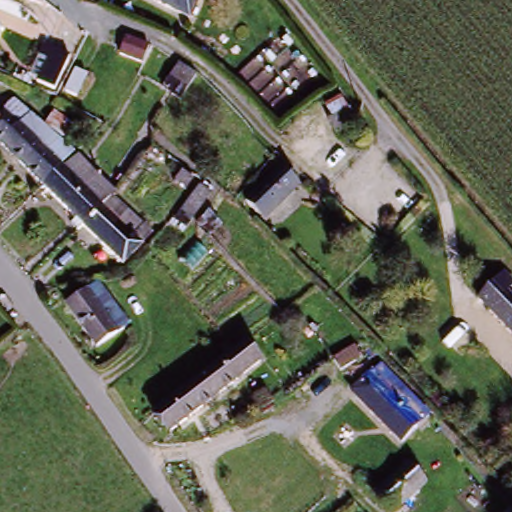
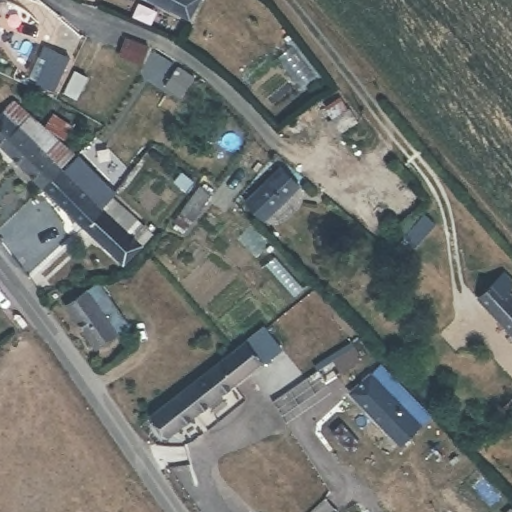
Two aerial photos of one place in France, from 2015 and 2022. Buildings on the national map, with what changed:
unchanged [(156,0),(199,0),(190,18),(156,0)]
unchanged [(133,61),(117,51),(125,40),(140,51),(133,61)]
unchanged [(60,82),(39,76),(49,54),(42,53),(46,41),(72,51),(60,82)]
unchanged [(78,94),(67,89),(78,66),(87,71),(78,94)]
unchanged [(0,114),(15,99),(82,158),(55,186),(0,138),(0,114)]
unchanged [(63,133),(50,121),(59,111),(72,123),(63,133)]
unchanged [(94,221),(55,186),(82,158),(119,190),(109,204),(94,221)]
unchanged [(264,214),(247,198),(279,168),(297,187),(264,214)]
unchanged [(143,264),(94,221),(109,204),(158,248),(143,264)]
unchanged [(94,337),(60,299),(87,275),(121,314),(94,337)]
unchanged [(489,303),(477,291),(494,275),(507,290),(512,296),(512,331),(489,303)]
unchanged [(360,353),(344,365),(332,351),(350,341),(360,353)]
unchanged [(258,365),(172,441),(156,421),(244,349),(258,365)]
unchanged [(426,424),(407,441),(360,389),(376,372),(426,424)]
unchanged [(431,479),(402,508),(384,489),(412,460),(431,479)]

